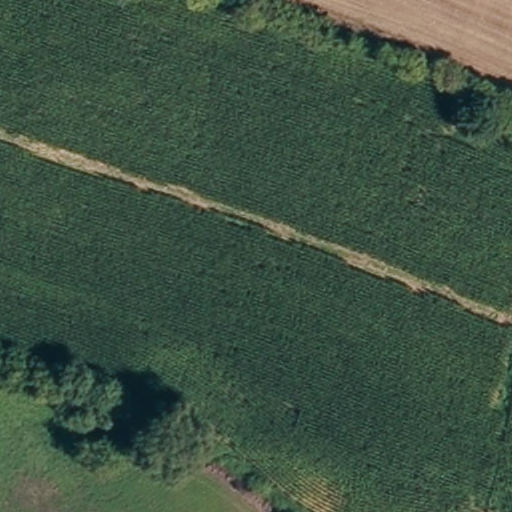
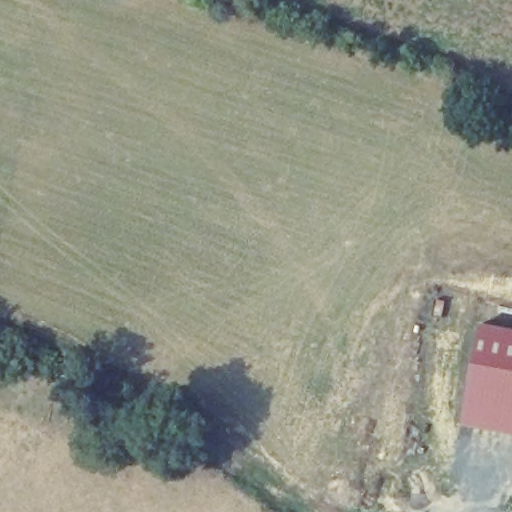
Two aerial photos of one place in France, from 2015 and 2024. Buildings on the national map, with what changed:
new [(478,326),(512,332),(512,436),(462,428),(478,326)]

